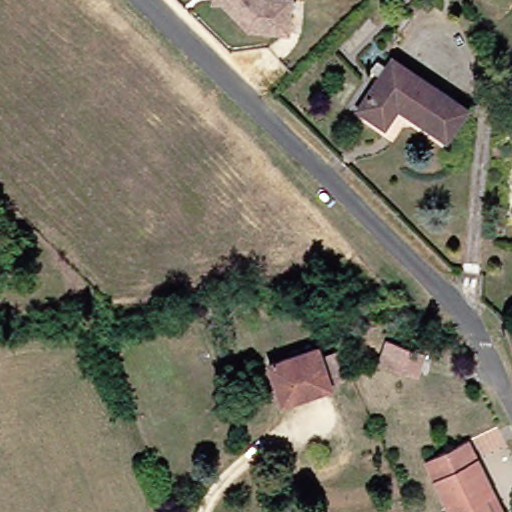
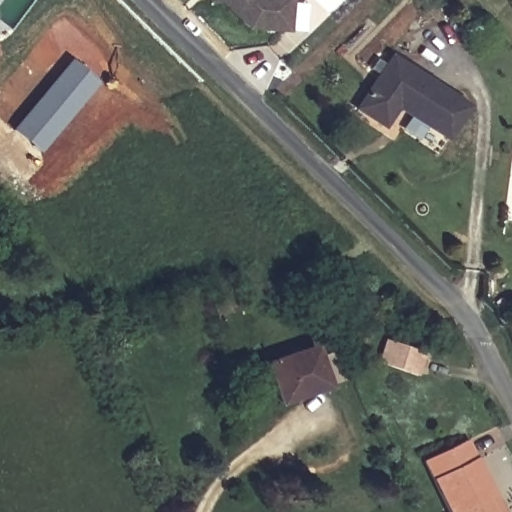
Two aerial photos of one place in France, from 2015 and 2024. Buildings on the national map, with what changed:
unchanged [(283,30),(243,27),(216,0),(285,0),(283,30)]
new [(12,130),(72,58),(99,82),(38,153),(12,130)]
unchanged [(467,112),(446,144),(397,112),(384,132),(357,114),(379,80),(371,75),(378,64),(386,69),(392,61),(467,112)]
unchanged [(424,353),(417,376),(379,361),(386,339),(424,353)]
unchanged [(324,391),(277,407),(264,369),(311,353),(324,391)]
unchanged [(463,445),(489,497),(496,512),(442,512),(419,466),(463,445)]

